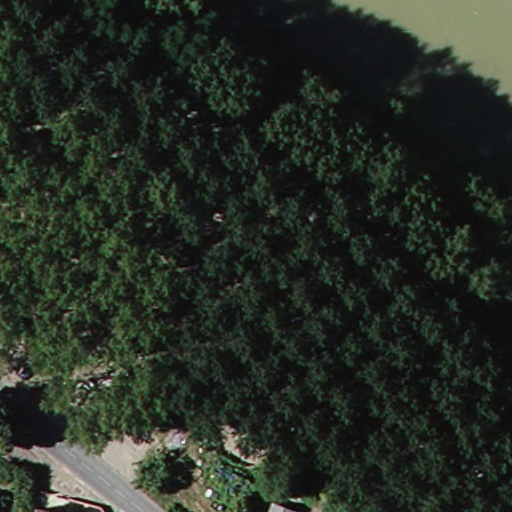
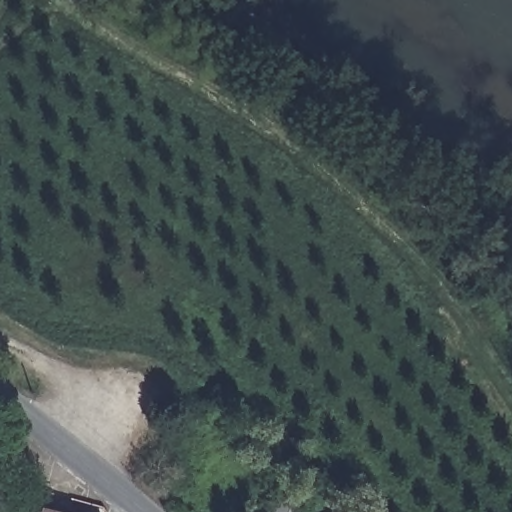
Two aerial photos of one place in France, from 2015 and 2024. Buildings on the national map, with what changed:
unchanged [(310,503),(307,512),(280,512),(286,495),(310,503)]
unchanged [(76,512),(48,512),(50,504),(76,512)]

